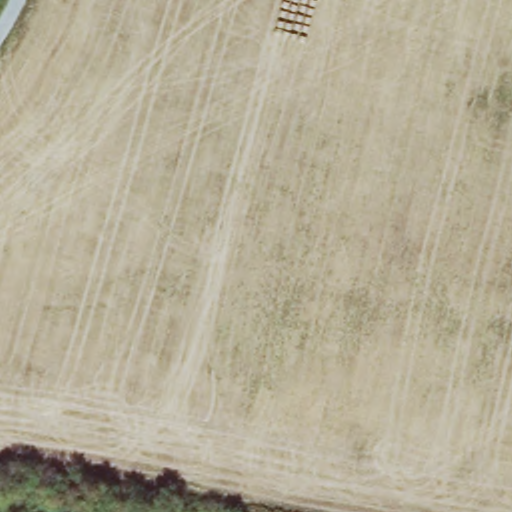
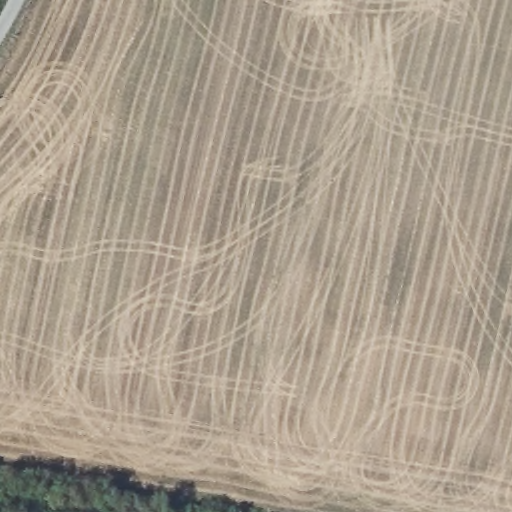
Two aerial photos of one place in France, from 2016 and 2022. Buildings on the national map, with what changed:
unchanged [(0,502),(72,512),(0,512),(0,502)]

